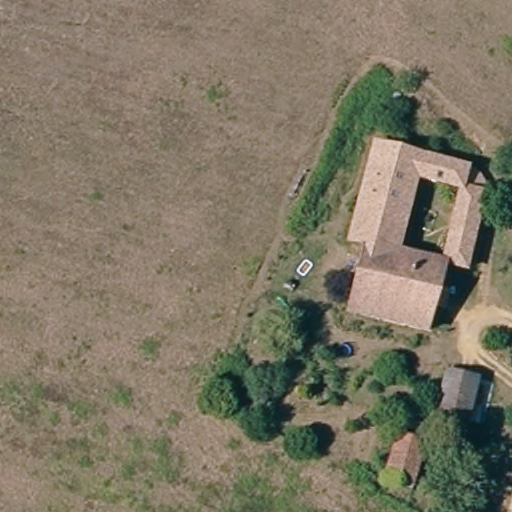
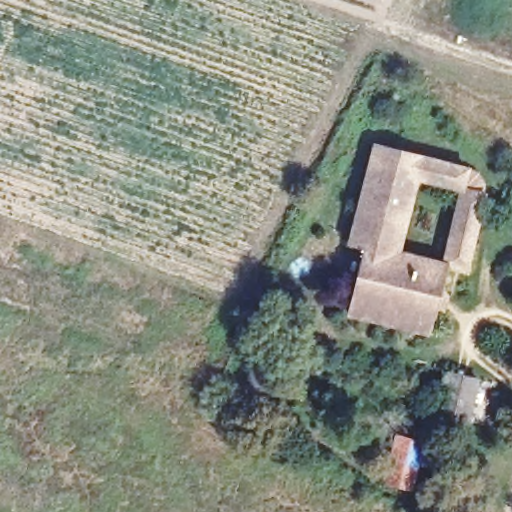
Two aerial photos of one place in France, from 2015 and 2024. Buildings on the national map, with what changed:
unchanged [(485,183),(470,294),(445,290),(437,340),(356,328),(367,262),(358,261),(375,166),(404,170),(389,265),(412,270),(447,277),(457,207),(441,203),(445,177),(485,183)]
unchanged [(441,203),(424,199),(412,270),(389,265),(404,170),(445,177),(441,203)]
unchanged [(453,377),(478,385),(467,417),(442,410),(453,377)]
unchanged [(432,447),(417,489),(390,478),(404,436),(432,447)]

